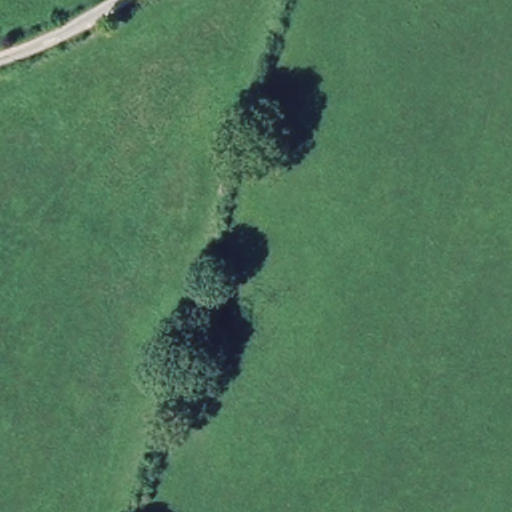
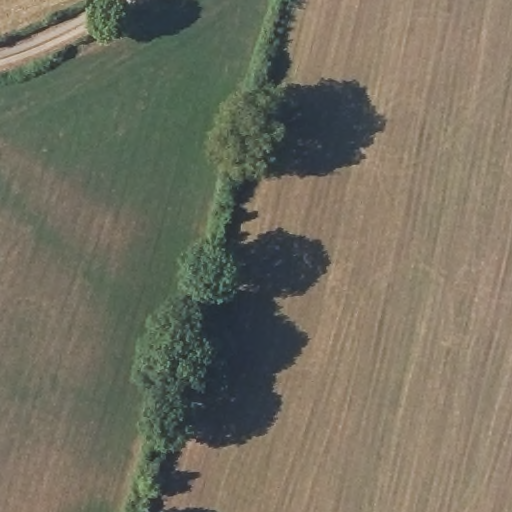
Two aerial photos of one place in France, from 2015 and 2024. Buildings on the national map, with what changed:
unchanged [(228,298),(213,356),(190,352),(206,295),(228,298)]

